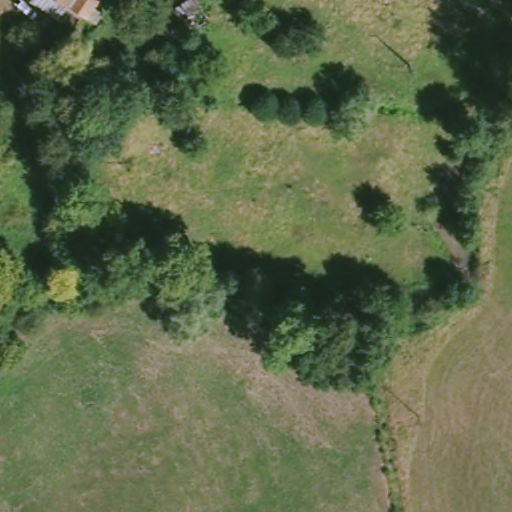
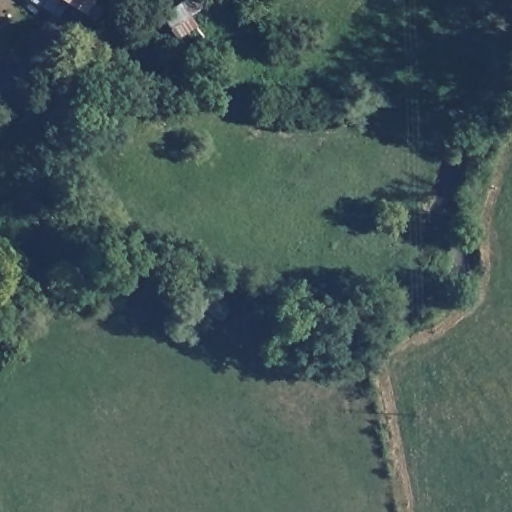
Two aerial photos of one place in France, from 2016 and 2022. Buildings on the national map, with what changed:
unchanged [(100,18),(91,13),(73,0),(98,0),(108,6),(100,18)]

